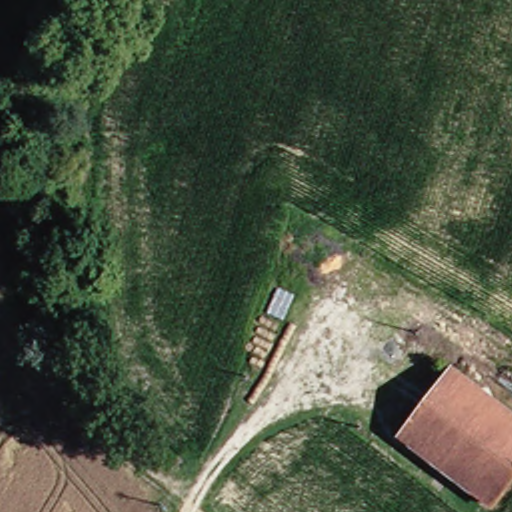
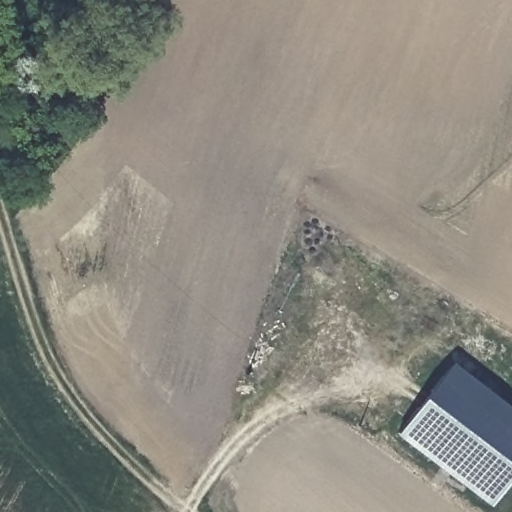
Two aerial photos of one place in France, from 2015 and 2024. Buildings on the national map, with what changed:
unchanged [(451,367),(512,410),(512,486),(498,506),(401,439),(451,367)]

